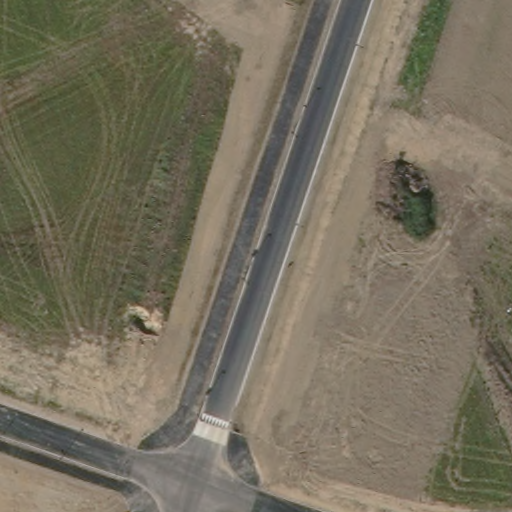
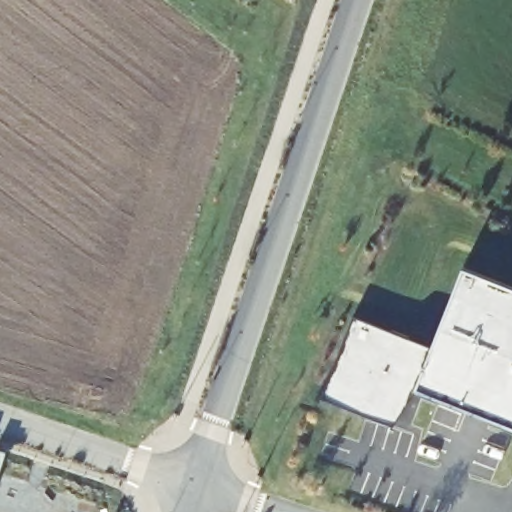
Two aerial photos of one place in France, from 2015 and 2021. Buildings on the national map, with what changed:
new [(430,349),(462,269),(512,289),(512,426),(414,389),(393,423),(323,398),(354,317),(430,349)]

